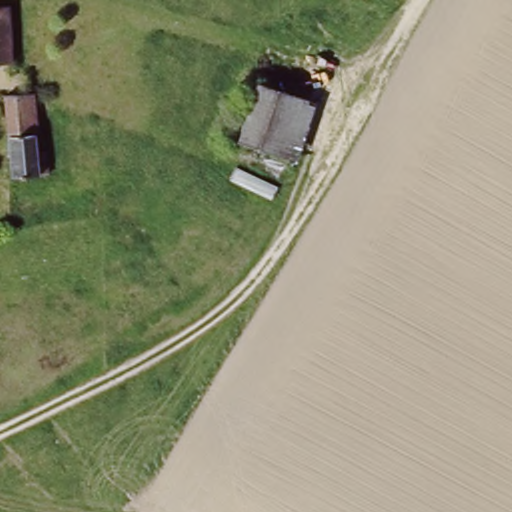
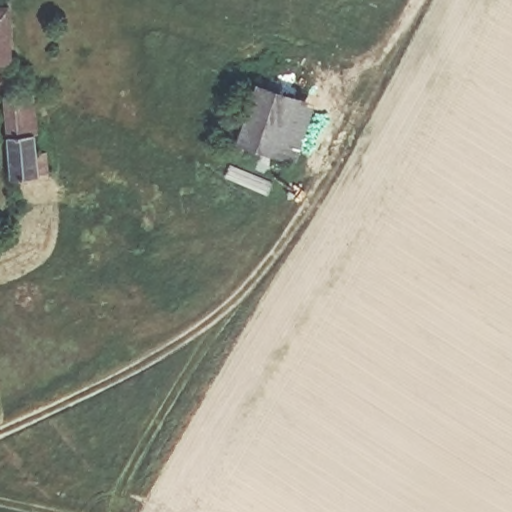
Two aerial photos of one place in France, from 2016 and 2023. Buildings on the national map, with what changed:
unchanged [(14,172),(3,62),(0,63),(0,4),(9,3),(17,48),(29,45),(39,147),(48,146),(52,171),(14,172)]
unchanged [(288,171),(228,155),(250,86),(309,105),(288,171)]

